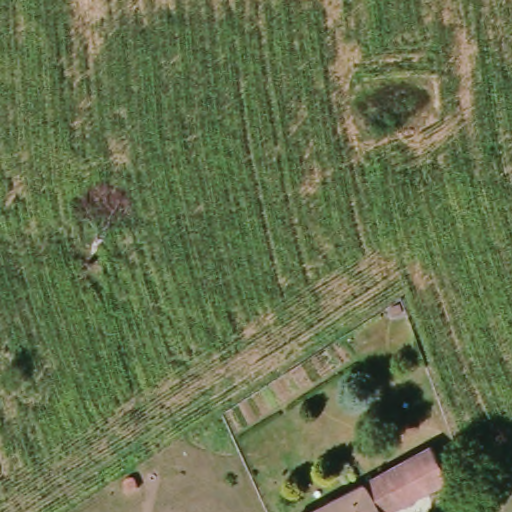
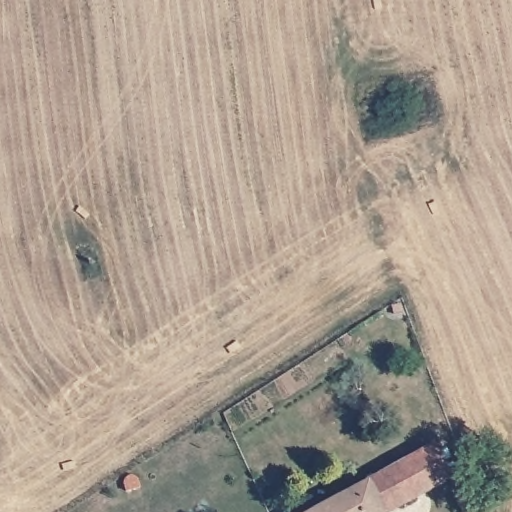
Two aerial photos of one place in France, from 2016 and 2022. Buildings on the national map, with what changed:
unchanged [(444,483),(392,512),(311,512),(426,449),(444,483)]

